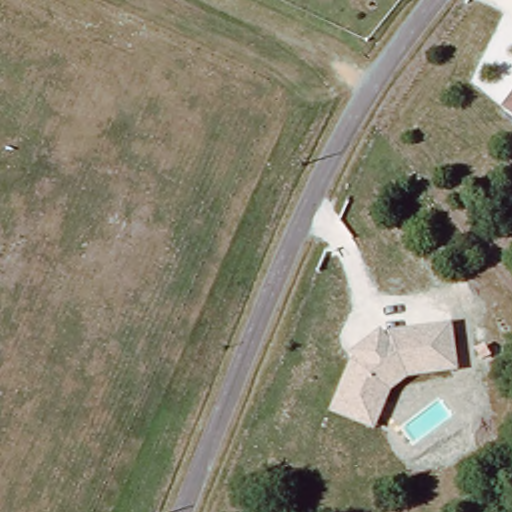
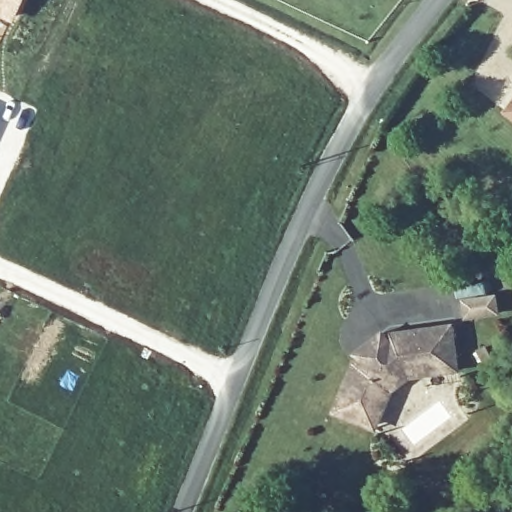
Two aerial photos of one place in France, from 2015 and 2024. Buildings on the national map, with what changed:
new [(0,16),(0,0),(23,0),(13,22),(0,16)]
unchanged [(512,100),(512,119),(502,111),(512,100)]
unchanged [(332,412),(354,358),(349,351),(383,327),(389,333),(454,323),(460,372),(409,378),(391,392),(377,432),(332,412)]

